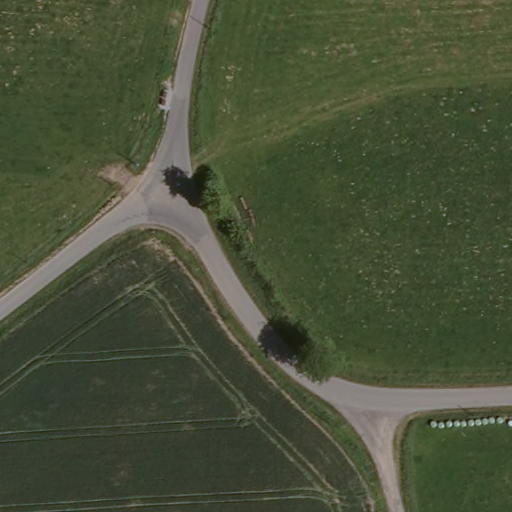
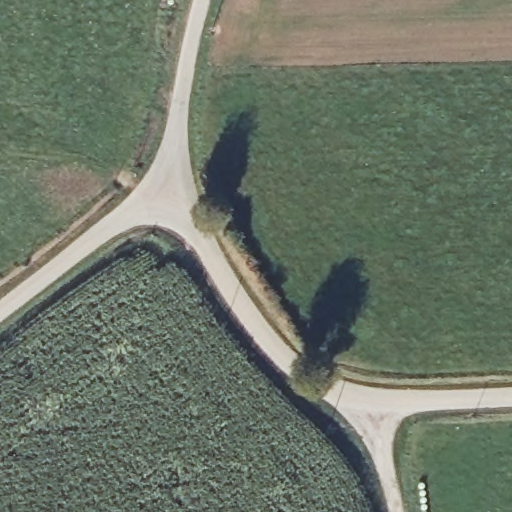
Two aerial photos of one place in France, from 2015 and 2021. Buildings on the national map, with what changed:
[]

